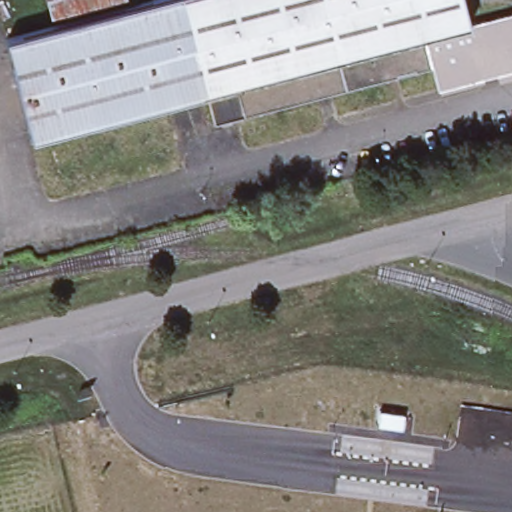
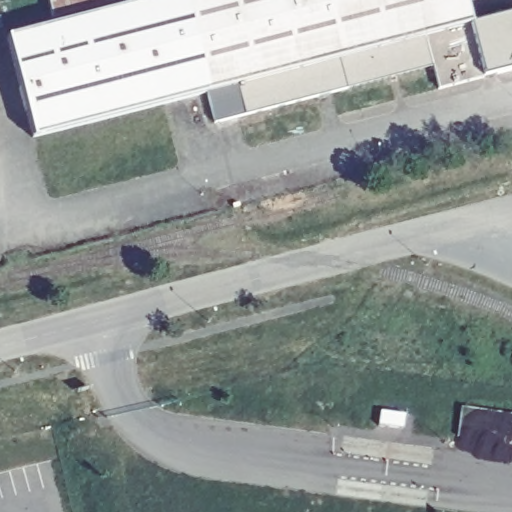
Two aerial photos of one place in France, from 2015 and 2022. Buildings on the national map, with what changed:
unchanged [(512,11),(512,69),(442,86),(437,62),(213,120),(205,90),(32,136),(5,35),(141,0),(466,0),(472,21),(512,11)]
unchanged [(51,0),(106,0),(55,13),(51,0)]

